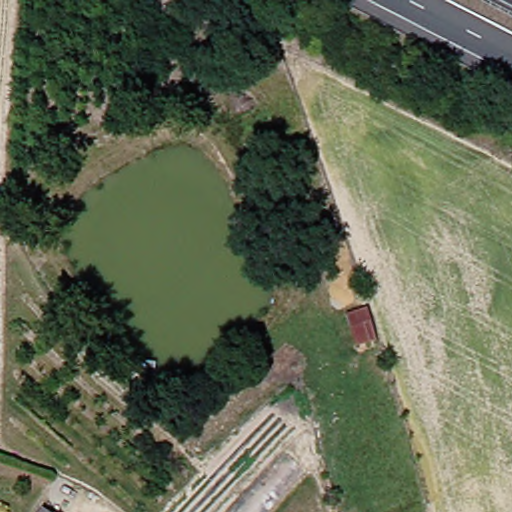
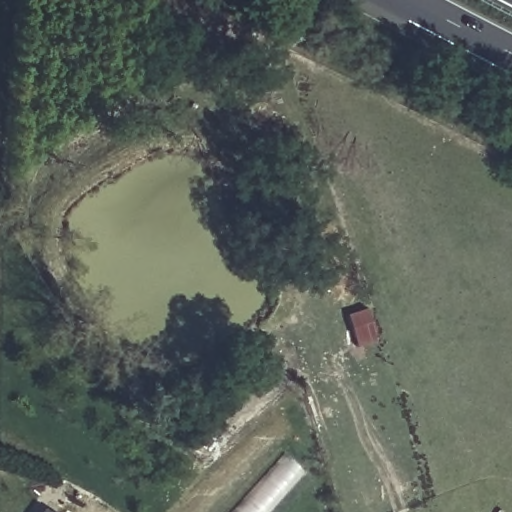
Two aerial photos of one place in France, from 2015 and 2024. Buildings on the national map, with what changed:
unchanged [(373,304),(384,336),(343,348),(332,315),(373,304)]
new [(305,473),(270,512),(236,512),(286,455),(305,473)]
unchanged [(51,508),(58,512),(49,512),(51,508)]

